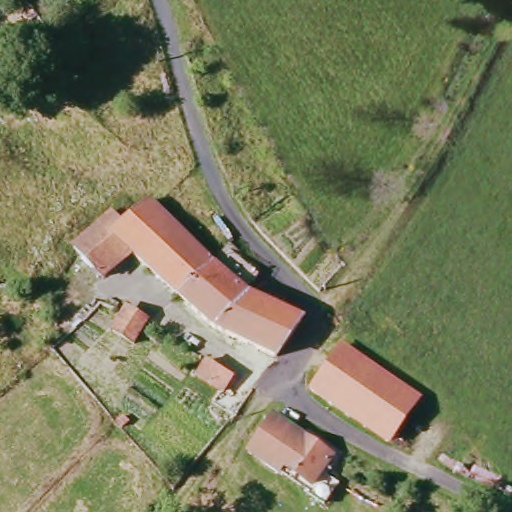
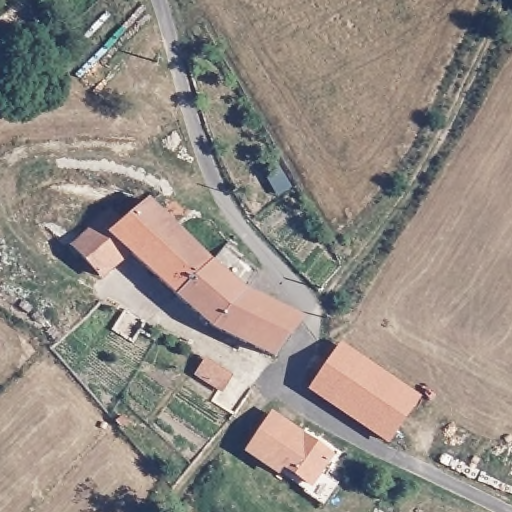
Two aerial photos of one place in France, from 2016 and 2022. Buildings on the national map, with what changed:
unchanged [(61,252),(137,187),(144,193),(167,219),(90,286),(61,252)]
unchanged [(141,265),(178,234),(219,268),(184,306),(141,265)]
unchanged [(237,250),(270,280),(254,298),(219,268),(237,250)]
unchanged [(219,268),(254,298),(293,321),(267,362),(215,334),(184,306),(219,268)]
unchanged [(340,347),(384,377),(360,417),(358,420),(313,390),(340,347)]
unchanged [(195,386),(205,367),(232,381),(242,387),(233,393),(218,398),(195,386)]
unchanged [(384,377),(412,397),(392,429),(385,438),(358,420),(360,417),(384,377)]
unchanged [(275,465),(243,442),(272,407),(324,449),(317,461),(330,474),(317,499),(275,465)]

